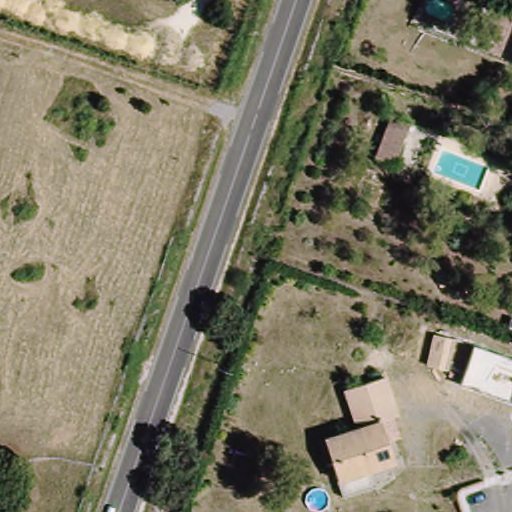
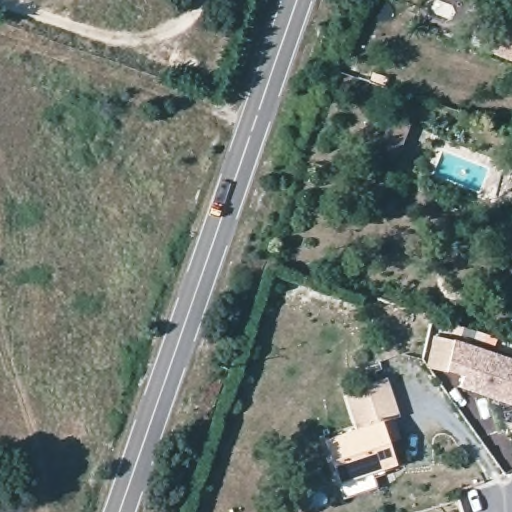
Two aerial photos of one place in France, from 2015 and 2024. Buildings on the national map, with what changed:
unchanged [(504,13),(512,17),(512,60),(489,50),(504,13)]
unchanged [(404,117),(420,124),(404,166),(388,159),(404,117)]
demolished [(429,367),(435,337),(455,342),(449,371),(429,367)]
new [(461,389),(465,374),(449,371),(429,367),(435,337),(455,342),(512,360),(512,405),(461,389)]
unchanged [(344,495),(337,476),(322,436),(357,423),(344,387),(380,373),(394,411),(380,416),(395,457),(400,467),(372,475),(375,485),(344,495)]

